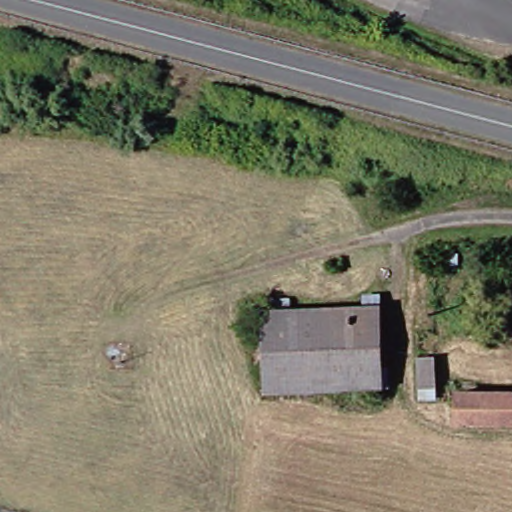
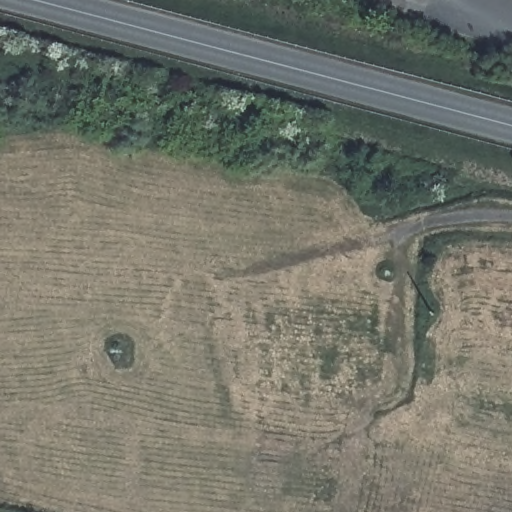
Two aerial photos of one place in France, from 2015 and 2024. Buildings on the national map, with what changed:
demolished [(268,392),(266,312),(364,309),(364,298),(379,298),(382,389),(268,392)]
demolished [(512,390),(512,418),(464,418),(465,390),(512,390)]

